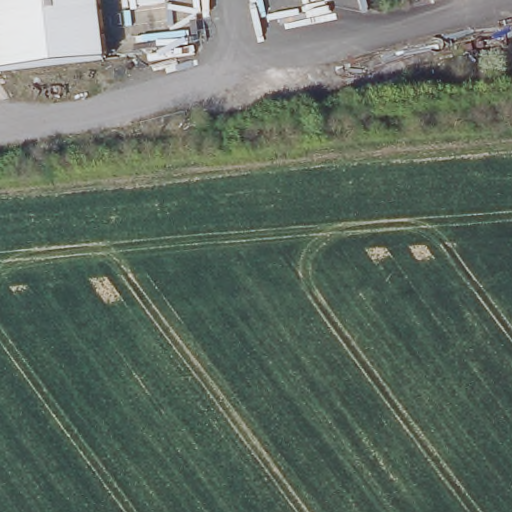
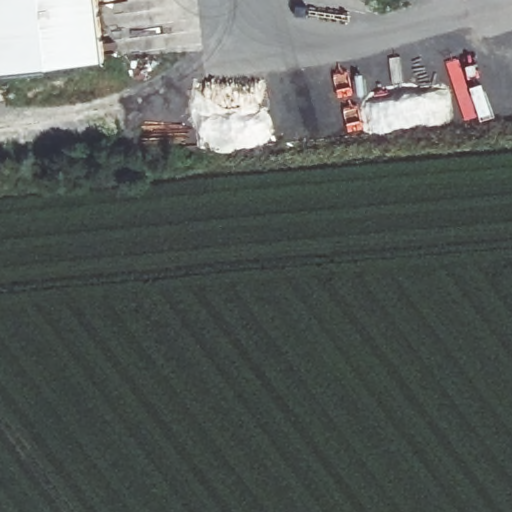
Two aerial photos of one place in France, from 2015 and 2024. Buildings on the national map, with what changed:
unchanged [(0,72),(0,0),(95,0),(102,60),(0,72)]

